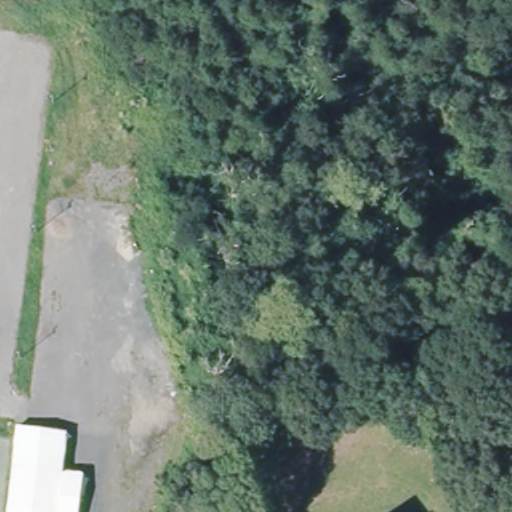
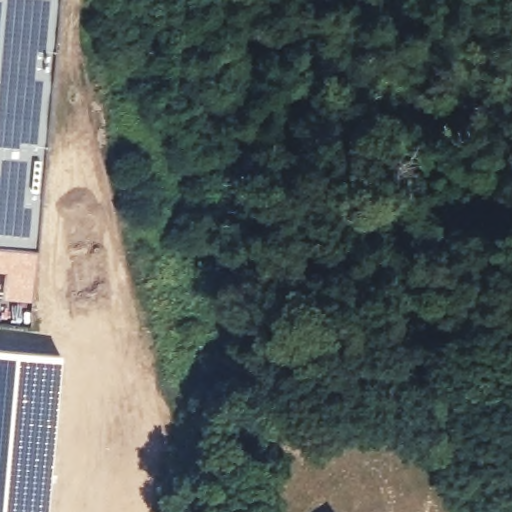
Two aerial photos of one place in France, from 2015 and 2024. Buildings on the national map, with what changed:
new [(54,25),(52,67),(46,136),(41,175),(31,300),(2,297),(2,273),(0,273),(0,0),(57,0),(54,25)]
new [(47,512),(0,512),(0,349),(61,355),(47,512)]
demolished [(128,442),(128,512),(12,512),(20,436),(128,442)]

